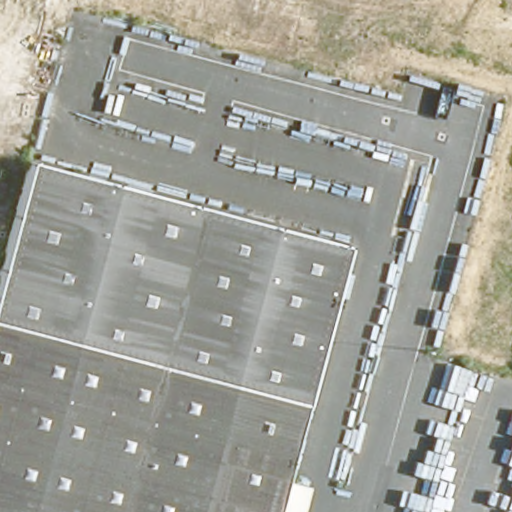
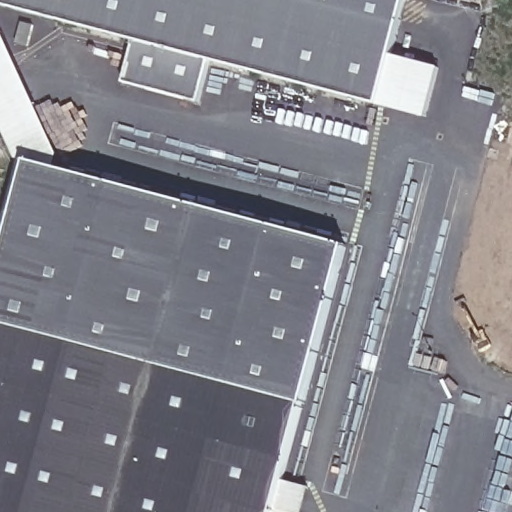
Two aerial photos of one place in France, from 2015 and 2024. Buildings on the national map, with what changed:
new [(391,56),(439,69),(425,118),(378,105),(212,61),(197,101),(124,83),(138,41),(0,3),(0,0),(405,0),(391,56)]
new [(0,25),(60,155),(56,169),(26,161),(18,159),(0,120),(0,25)]
unchanged [(345,247),(301,401),(0,318),(0,261),(26,161),(345,247)]
unchanged [(0,322),(57,339),(17,486),(0,481),(0,322)]
unchanged [(57,339),(301,410),(273,512),(9,512),(17,486),(57,339)]
unchanged [(9,512),(0,512),(0,481),(17,486),(9,512)]

